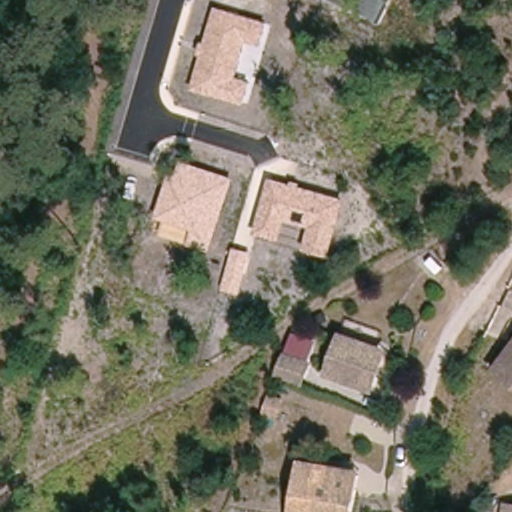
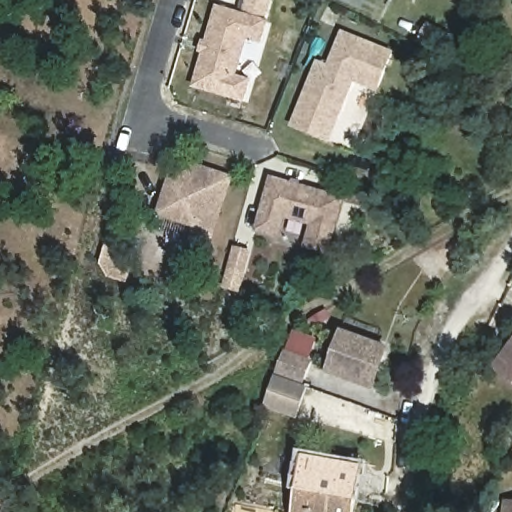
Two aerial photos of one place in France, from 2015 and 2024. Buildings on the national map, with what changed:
unchanged [(262,47),(249,43),(240,78),(254,83),(247,104),(194,90),(203,56),(199,55),(203,41),(207,41),(217,7),(271,23),(262,47)]
new [(356,83),(332,143),(293,128),(319,61),(329,65),(341,31),(396,51),(380,92),(356,83)]
unchanged [(210,250),(163,234),(166,223),(159,220),(178,161),(235,180),(210,250)]
unchanged [(328,258),(302,251),(307,230),(286,224),(280,242),(256,235),(272,177),(291,183),(292,180),(305,183),(303,186),(345,198),(328,258)]
new [(107,247),(120,250),(117,260),(121,268),(131,270),(127,283),(110,278),(102,264),(107,247)]
new [(239,249),(252,253),(247,273),(242,291),(228,286),(233,268),(239,249)]
unchanged [(366,388),(359,385),(325,373),(337,334),(372,345),(380,348),(366,388)]
unchanged [(500,374),(508,364),(512,358),(512,382),(500,374)]
unchanged [(305,373),(298,394),(274,386),(281,366),(305,373)]
unchanged [(362,470),(361,477),(327,472),(323,495),(317,494),(314,512),(300,512),(306,461),(362,470)]
unchanged [(323,495),(327,472),(361,477),(356,512),(314,512),(317,494),(323,495)]
unchanged [(512,510),(512,512),(508,512),(508,509),(512,510)]

